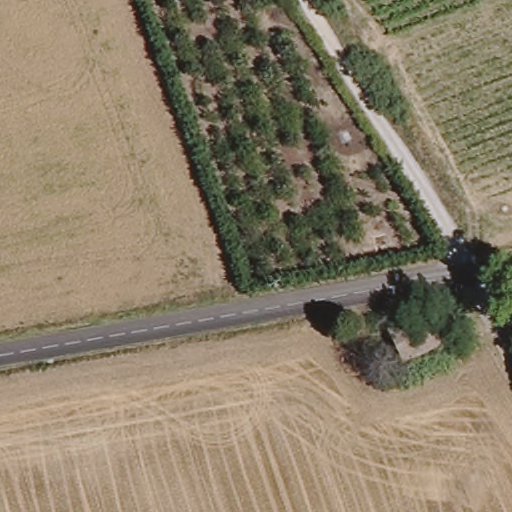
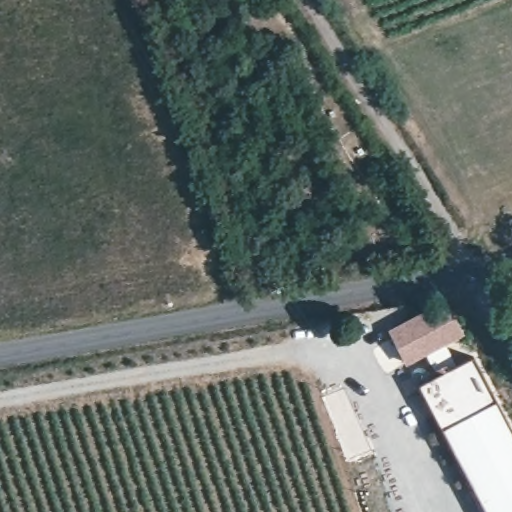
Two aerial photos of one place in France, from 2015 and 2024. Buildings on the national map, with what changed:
unchanged [(406,365),(390,334),(451,306),(472,332),(406,365)]
new [(472,358),(495,400),(440,428),(418,385),(472,358)]
new [(512,433),(512,512),(485,512),(440,428),(495,400),(512,433)]

